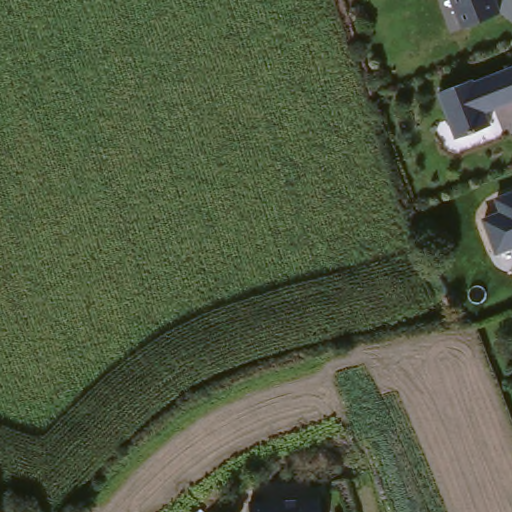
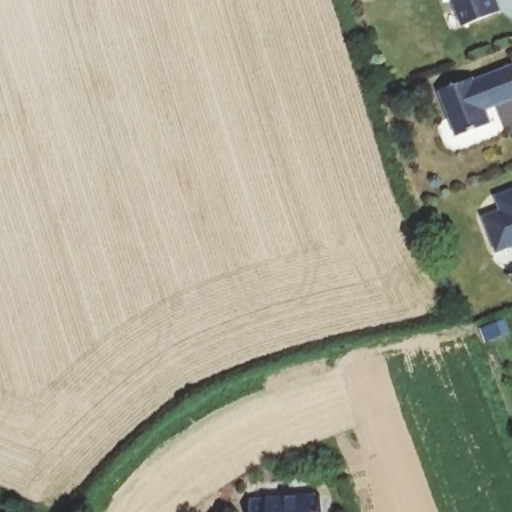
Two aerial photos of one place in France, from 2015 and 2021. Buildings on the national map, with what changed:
unchanged [(499,17),(464,31),(451,0),(493,0),(499,17)]
unchanged [(512,68),(512,97),(489,106),(488,103),(479,106),(486,123),(452,137),(434,91),(469,78),(469,81),(511,65),(512,68)]
unchanged [(511,246),(494,253),(482,220),(499,213),(494,200),(512,193),(512,248),(511,246)]
unchanged [(249,512),(248,501),(317,496),(318,512),(249,512)]

